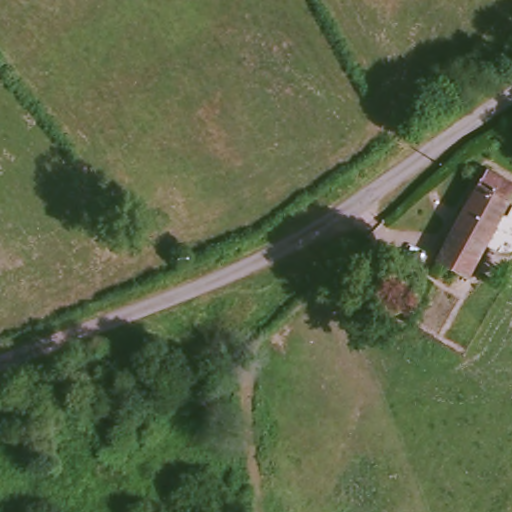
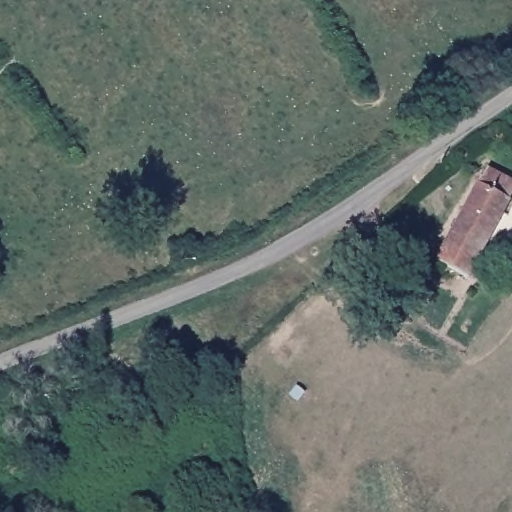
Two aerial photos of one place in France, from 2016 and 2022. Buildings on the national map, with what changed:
unchanged [(490,228),(465,277),(435,258),(485,171),(512,185),(512,187),(490,228)]

